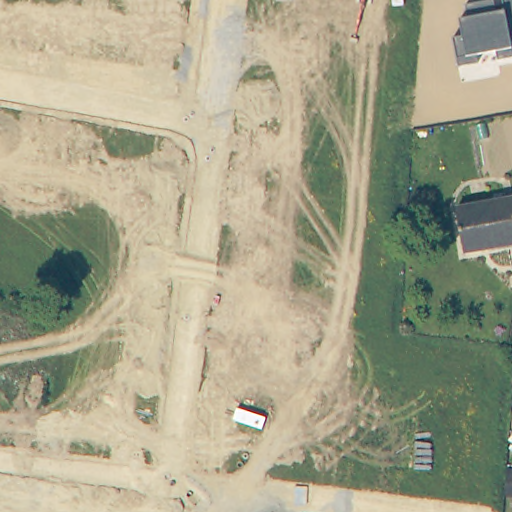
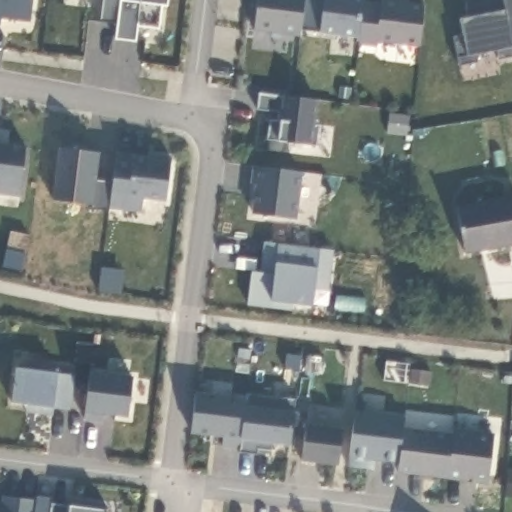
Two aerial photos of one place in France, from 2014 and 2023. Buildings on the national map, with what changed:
unchanged [(2,19),(0,26),(0,0),(33,0),(31,22),(2,19)]
new [(162,5),(158,27),(137,24),(136,41),(116,38),(118,22),(101,20),(105,0),(167,0),(167,5),(162,5)]
new [(380,3),(380,0),(403,0),(408,1),(408,3),(423,5),(418,46),(377,41),(375,47),(358,45),(359,39),(302,31),(301,37),(252,31),(257,0),(365,0),(365,1),(380,3)]
unchanged [(498,60),(496,51),(477,55),(478,63),(457,66),(452,38),(462,36),(459,19),(468,18),(465,5),(487,0),(493,0),(495,13),(505,11),(502,0),(512,0),(512,57),(498,60)]
new [(267,140),(270,120),(277,121),(278,111),(257,110),(259,93),(317,100),(314,125),(320,126),(317,145),(267,140)]
new [(19,197),(0,194),(0,143),(27,146),(19,197)]
new [(101,152),(96,180),(111,182),(117,152),(172,158),(167,201),(143,198),(142,213),(109,208),(109,210),(92,207),(92,205),(52,200),(60,146),(101,152)]
new [(297,220),(252,214),(256,185),(252,184),(255,166),(302,173),(297,220)]
unchanged [(474,253),(465,206),(512,197),(512,246),(474,253)]
new [(292,311),(247,306),(252,271),(261,272),(263,242),(334,250),(328,290),(315,288),(312,306),(293,304),(292,311)]
new [(41,370),(40,365),(59,369),(59,374),(77,375),(72,411),(53,409),(52,417),(25,413),(27,405),(12,402),(17,367),(41,370)]
new [(128,417),(105,415),(102,421),(83,419),(89,371),(133,377),(128,417)]
new [(247,398),(248,394),(297,400),(291,446),(274,444),(272,452),(257,450),(257,454),(240,452),(240,450),(222,448),(224,438),(190,434),(195,392),(247,398)]
new [(405,416),(404,428),(452,435),(452,428),(495,434),(487,484),(398,473),(398,462),(376,459),(374,470),(347,466),(355,410),(405,416)]
new [(301,461),(306,424),(344,429),(340,466),(301,461)]
new [(34,512),(0,512),(0,508),(2,509),(4,497),(36,499),(34,512)]
new [(52,504),(107,511),(106,512),(51,512),(52,504)]

